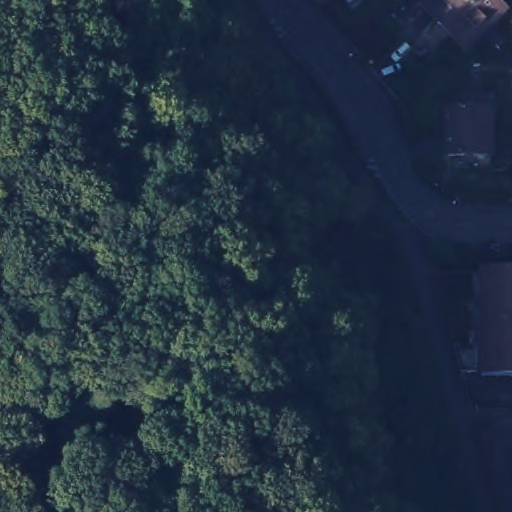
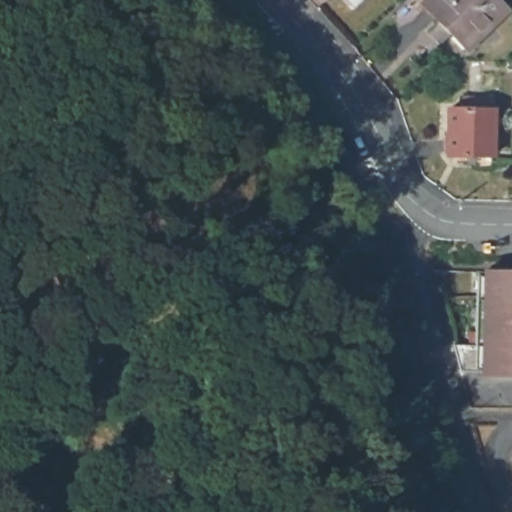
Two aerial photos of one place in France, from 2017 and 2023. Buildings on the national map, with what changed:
unchanged [(347,0),(363,0),(355,8),(347,0)]
unchanged [(429,5),(434,0),(501,0),(512,10),(472,49),(429,5)]
unchanged [(475,170),(476,156),(449,156),(450,109),(465,110),(465,98),(492,99),(491,110),(493,110),(492,158),(491,170),(475,170)]
unchanged [(483,372),(483,369),(467,368),(461,368),(454,341),(468,342),(484,342),(486,268),(512,268),(512,372),(483,372)]

